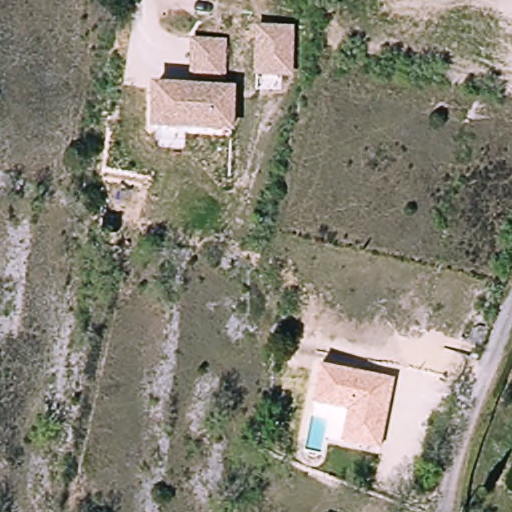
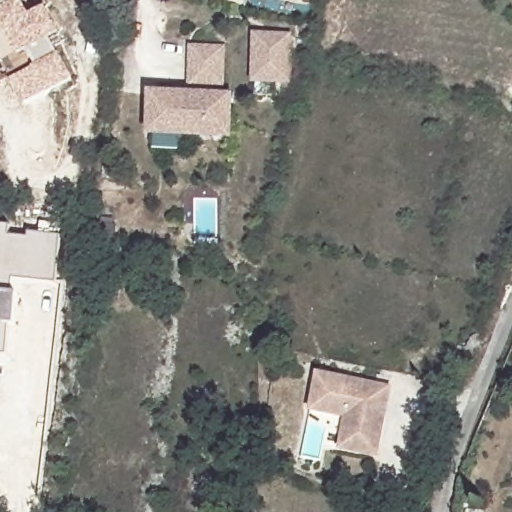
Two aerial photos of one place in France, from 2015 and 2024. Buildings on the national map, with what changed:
new [(31,16),(45,8),(60,33),(50,38),(72,78),(49,92),(28,105),(0,55),(0,0),(20,0),(22,1),(31,16)]
unchanged [(291,84),(252,82),(253,35),(291,35),(291,84)]
unchanged [(232,140),(149,136),(150,92),(191,94),(189,45),(224,46),(223,94),(233,94),(232,140)]
new [(10,235),(29,236),(30,231),(60,235),(56,282),(53,281),(52,288),(26,286),(25,296),(18,296),(15,325),(10,324),(7,355),(7,366),(0,365),(0,225),(11,225),(10,235)]
unchanged [(318,373),(391,387),(379,455),(339,448),(344,417),(311,411),(318,373)]

